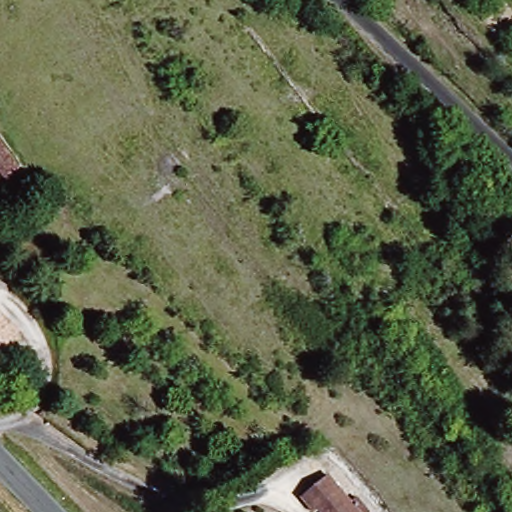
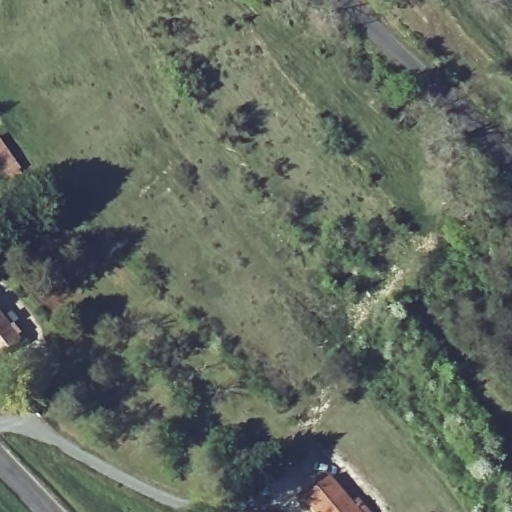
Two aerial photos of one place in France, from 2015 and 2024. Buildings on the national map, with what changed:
unchanged [(0,349),(0,314),(18,335),(0,349)]
unchanged [(335,487),(356,512),(314,512),(311,508),(335,487)]

